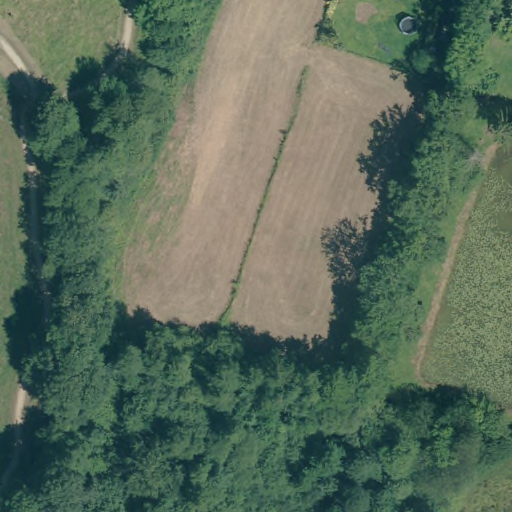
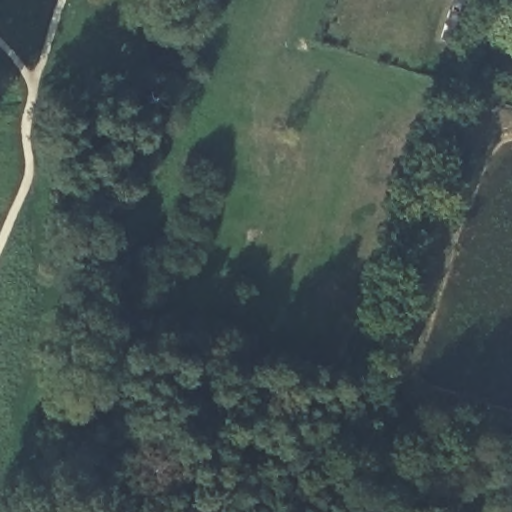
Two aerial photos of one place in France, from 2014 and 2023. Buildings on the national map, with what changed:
unchanged [(454,0),(480,0),(465,46),(441,37),(454,0)]
unchanged [(501,0),(512,0),(510,3),(501,0)]

